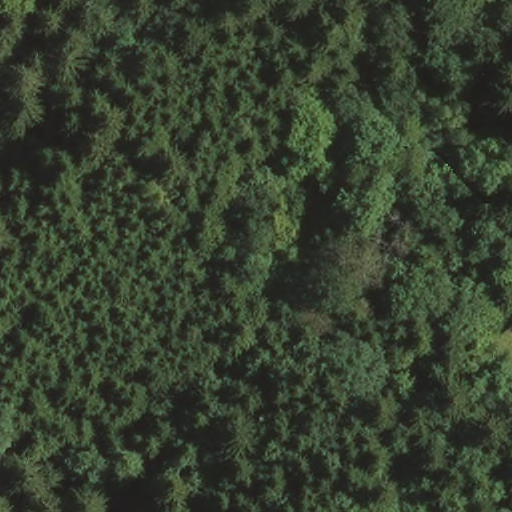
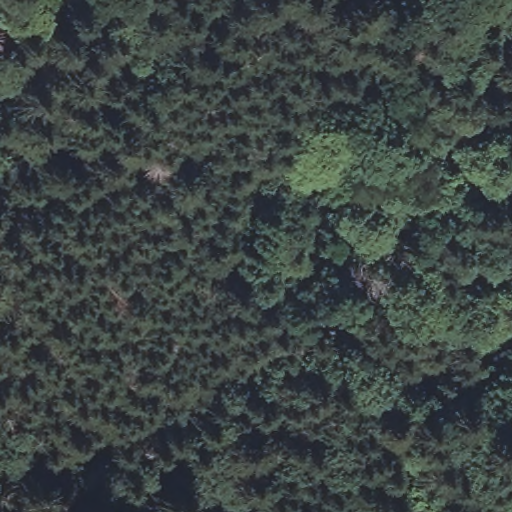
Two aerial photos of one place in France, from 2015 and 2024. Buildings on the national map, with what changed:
unchanged [(276,197),(305,201),(302,232),(272,230),(276,197)]

